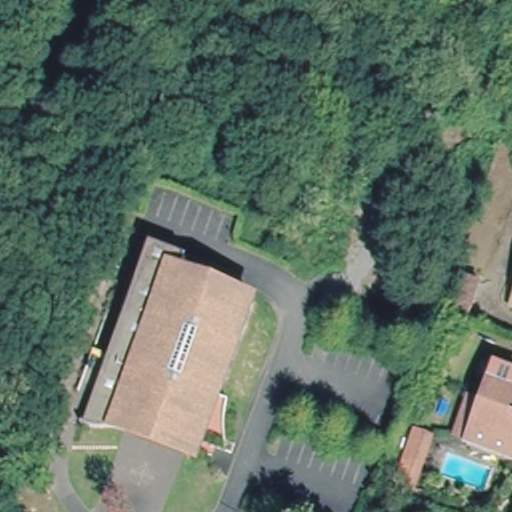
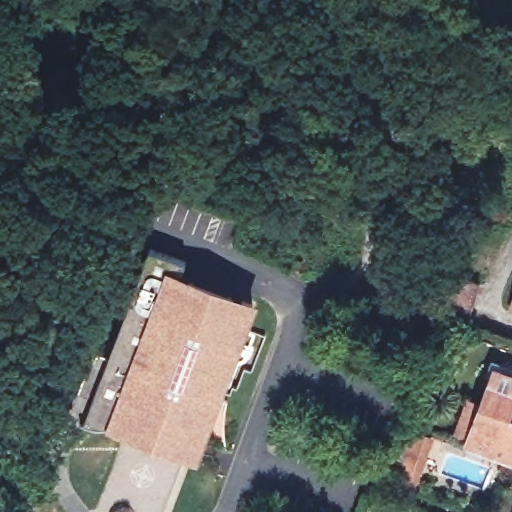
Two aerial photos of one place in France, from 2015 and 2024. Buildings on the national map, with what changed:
unchanged [(121,424),(111,424),(102,424),(91,421),(86,419),(86,417),(90,418),(112,362),(97,356),(101,345),(116,351),(133,309),(159,242),(196,256),(185,283),(196,288),(199,281),(201,277),(261,301),(253,323),(201,454),(130,427),(121,424)]
unchanged [(474,310),(447,300),(459,269),(485,279),(474,310)]
unchanged [(510,306),(512,300),(512,307),(510,306)]
unchanged [(469,399),(482,404),(496,368),(512,375),(512,460),(468,444),(454,439),(469,399)]
unchanged [(412,483),(398,478),(416,428),(430,433),(412,483)]

